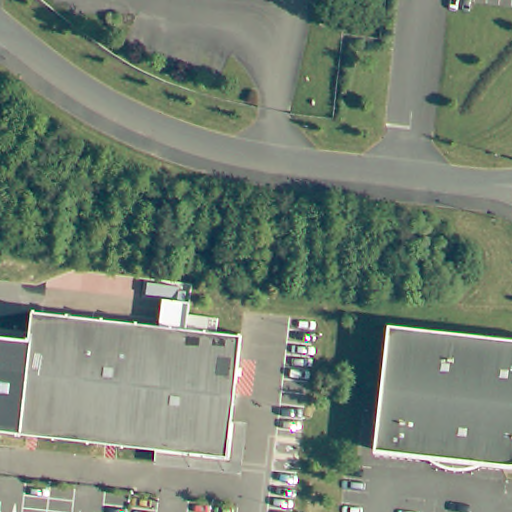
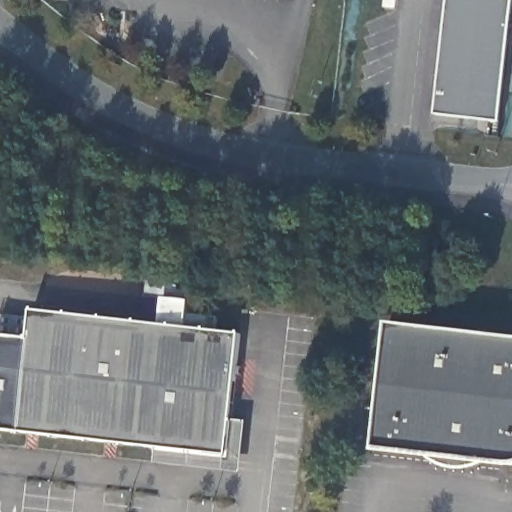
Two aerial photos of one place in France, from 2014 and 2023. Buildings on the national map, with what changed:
new [(512,18),(500,122),(436,115),(450,0),(512,0),(512,18)]
unchanged [(225,460),(19,431),(33,310),(170,328),(174,301),(190,303),(186,331),(241,338),(225,460)]
unchanged [(512,467),(507,467),(504,467),(369,449),(386,324),(512,341),(512,467)]

